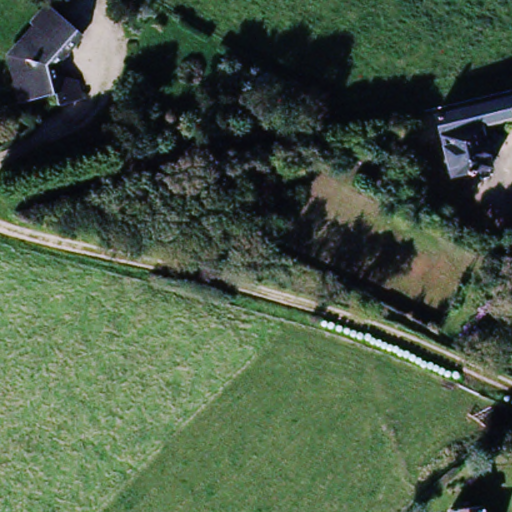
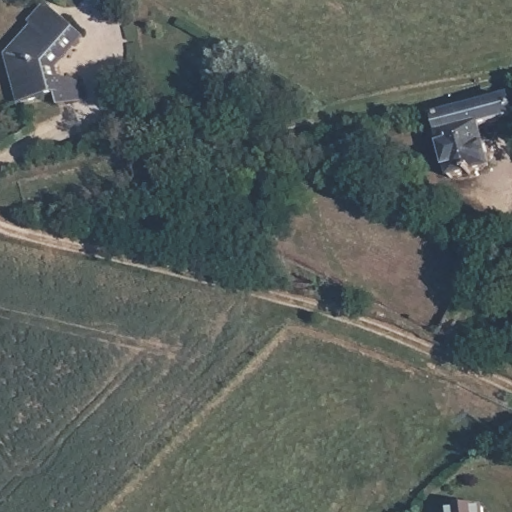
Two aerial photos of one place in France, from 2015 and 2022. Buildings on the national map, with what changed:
unchanged [(87,39),(58,75),(74,80),(82,101),(57,110),(50,93),(17,102),(1,57),(47,3),(87,39)]
unchanged [(446,169),(435,115),(511,97),(512,103),(512,119),(483,126),(488,160),(446,169)]
unchanged [(407,157),(380,164),(377,145),(402,139),(407,157)]
unchanged [(480,512),(452,512),(478,505),(480,512)]

